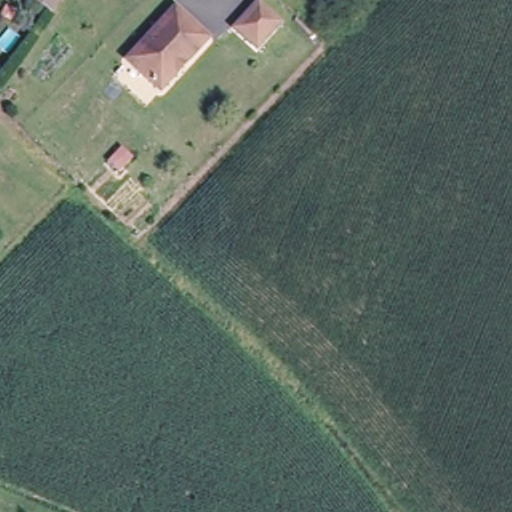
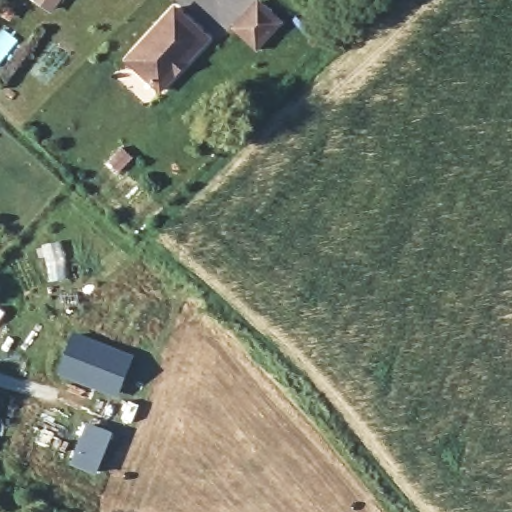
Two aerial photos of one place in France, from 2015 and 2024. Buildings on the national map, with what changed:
unchanged [(260,44),(238,25),(260,0),(262,0),(284,19),(260,44)]
unchanged [(212,37),(160,95),(125,64),(177,5),(212,37)]
new [(73,330),(135,354),(118,396),(56,375),(73,330)]
new [(87,421),(114,431),(96,474),(69,463),(87,421)]

